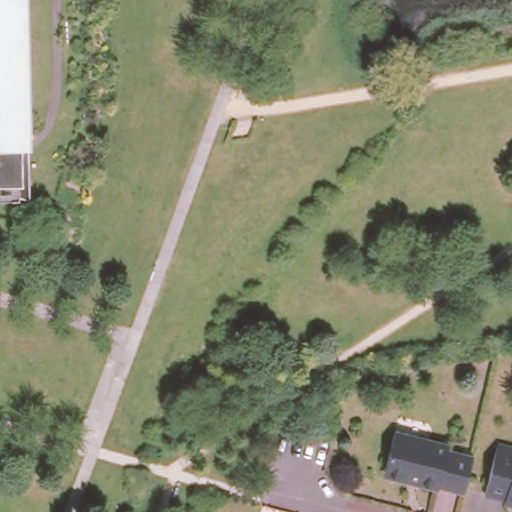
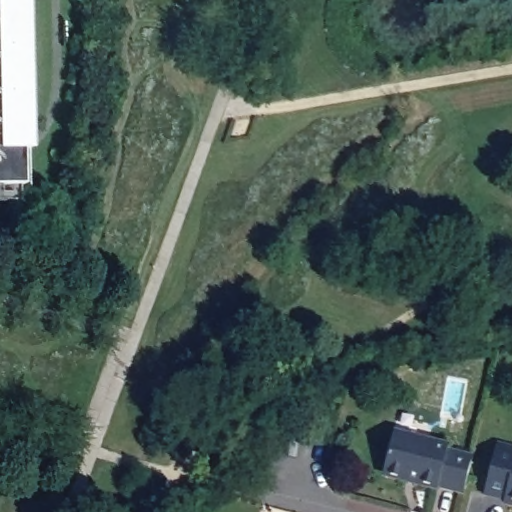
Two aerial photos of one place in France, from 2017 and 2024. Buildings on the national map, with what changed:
unchanged [(23,111),(25,144),(25,198),(17,198),(0,199),(0,0),(21,0),(23,111)]
unchanged [(457,492),(432,485),(432,488),(382,476),(378,469),(387,433),(442,446),(440,451),(467,458),(457,492)]
unchanged [(512,505),(502,502),(503,500),(483,495),(496,444),(512,448),(512,505)]

